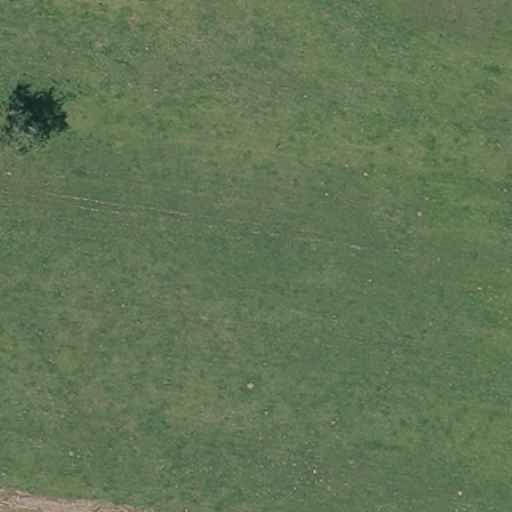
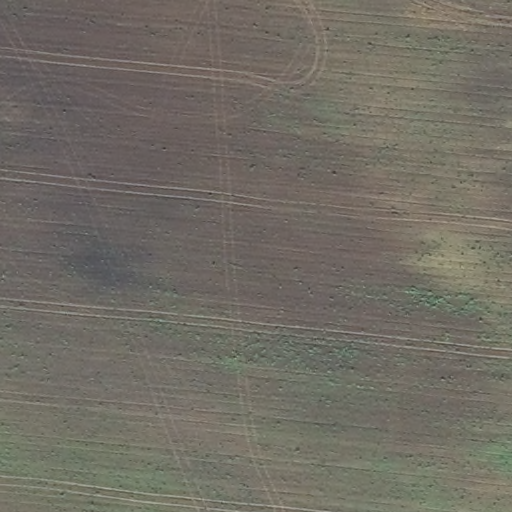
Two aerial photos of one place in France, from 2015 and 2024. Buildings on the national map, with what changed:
[]

